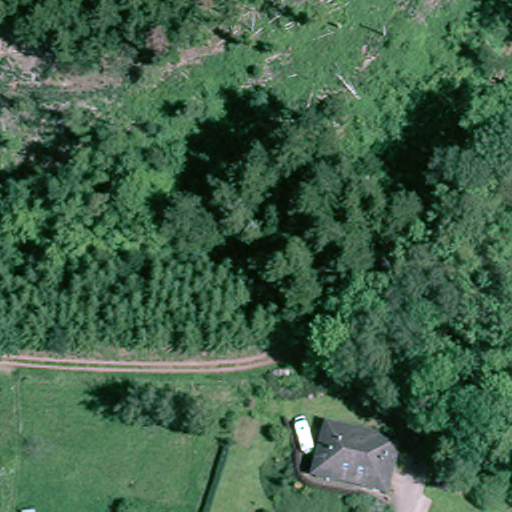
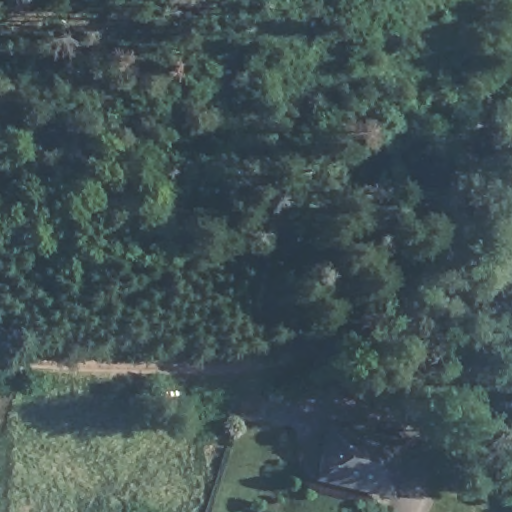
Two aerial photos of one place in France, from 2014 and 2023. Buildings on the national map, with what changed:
unchanged [(328,450),(333,428),(402,443),(390,492),(370,487),(322,476),(328,450)]

